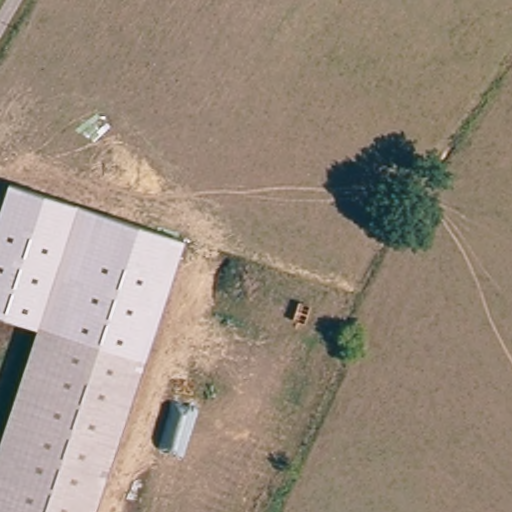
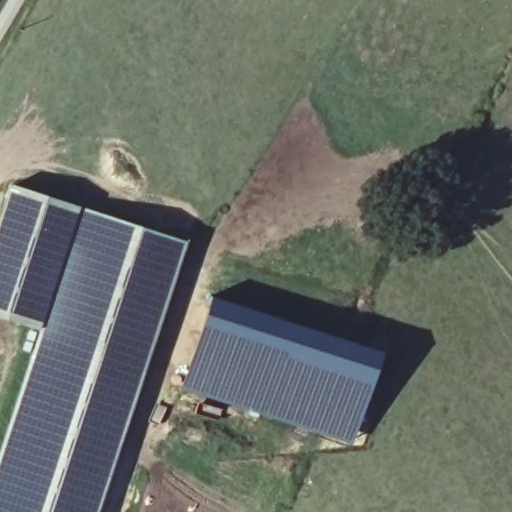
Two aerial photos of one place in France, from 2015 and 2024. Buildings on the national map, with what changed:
unchanged [(41,326),(40,330),(0,316),(0,214),(10,185),(184,241),(146,361),(41,326)]
new [(211,295),(382,350),(352,446),(238,407),(181,390),(211,295)]
unchanged [(98,512),(0,512),(0,450),(41,326),(146,361),(98,512)]

